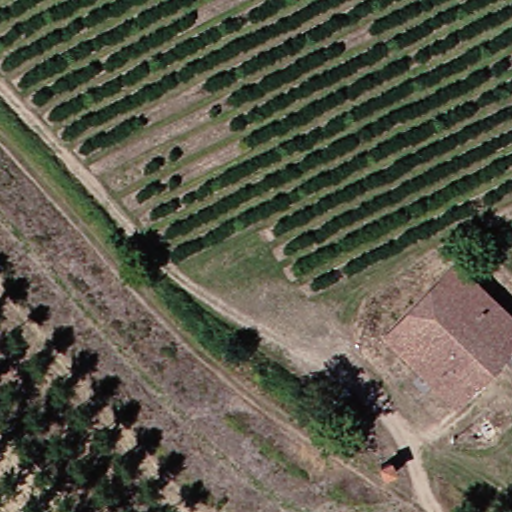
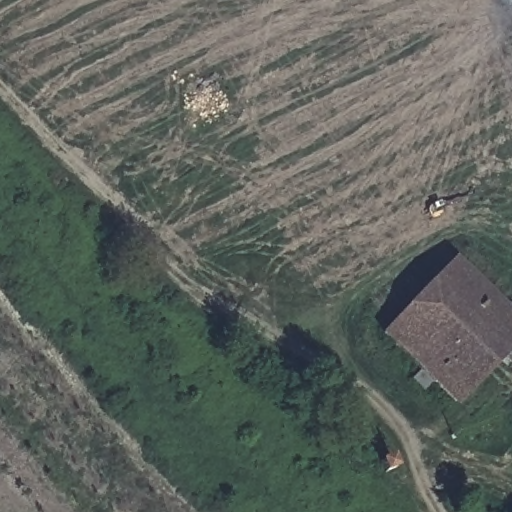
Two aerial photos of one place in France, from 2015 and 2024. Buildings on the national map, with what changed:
unchanged [(512,364),(510,367),(496,357),(445,411),(352,322),(428,241),(487,299),(512,323),(512,364)]
unchanged [(512,287),(512,323),(487,299),(506,280),(512,287)]

